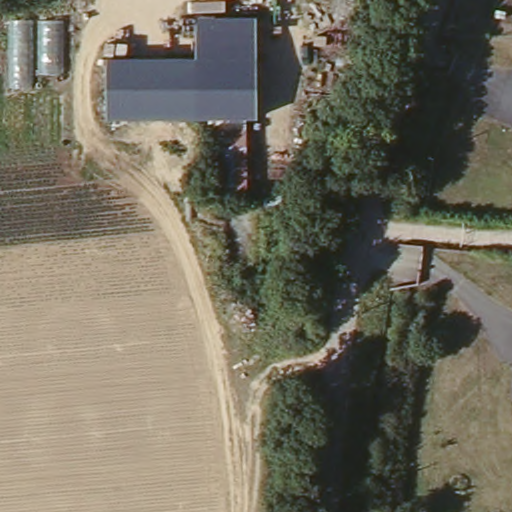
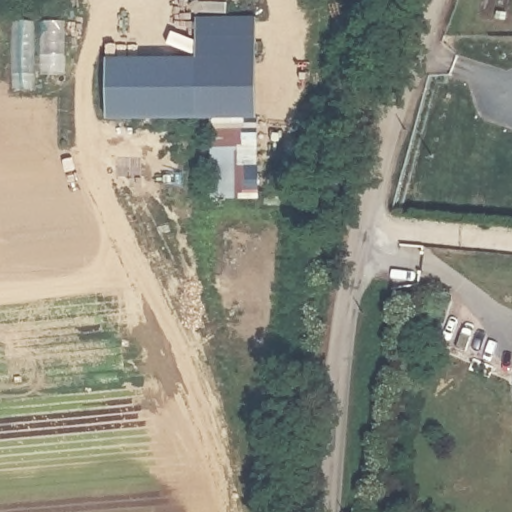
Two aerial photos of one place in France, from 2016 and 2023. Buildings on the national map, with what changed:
unchanged [(199,18),(257,17),(259,119),(244,121),(244,74),(209,74),(209,123),(193,118),(197,55),(199,18)]
unchanged [(197,55),(193,118),(110,121),(114,58),(197,55)]
unchanged [(211,197),(209,74),(244,74),(246,197),(211,197)]

